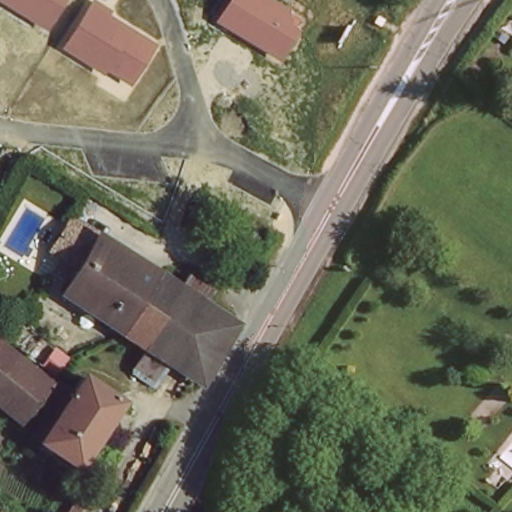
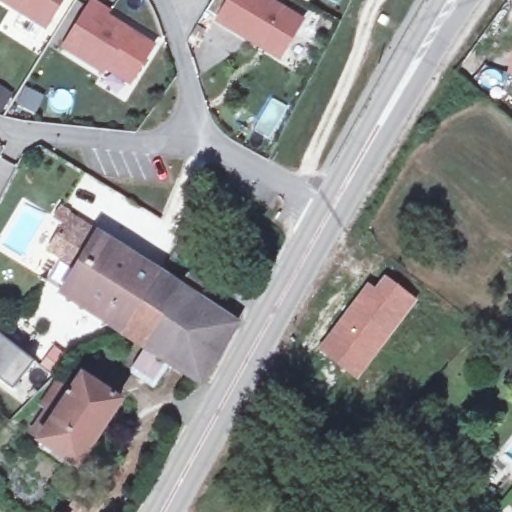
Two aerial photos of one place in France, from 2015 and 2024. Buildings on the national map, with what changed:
unchanged [(44,32),(0,4),(0,0),(63,0),(44,32)]
unchanged [(128,90),(61,50),(92,0),(111,11),(108,16),(156,45),(128,90)]
unchanged [(280,61),(214,23),(227,0),(271,0),(304,20),(280,61)]
unchanged [(122,332),(104,320),(60,289),(75,263),(50,246),(68,213),(86,224),(157,273),(132,316),(122,332)]
unchanged [(137,364),(148,349),(122,332),(132,316),(157,273),(163,277),(175,259),(209,279),(196,298),(236,324),(202,385),(162,359),(160,358),(150,373),(137,364)]
new [(367,281),(373,286),(383,274),(417,300),(356,381),(315,350),(367,281)]
unchanged [(0,393),(0,347),(48,380),(23,408),(0,393)]
unchanged [(53,414),(62,420),(66,415),(54,407),(65,388),(78,395),(87,380),(125,402),(84,468),(47,445),(38,440),(53,414)]

